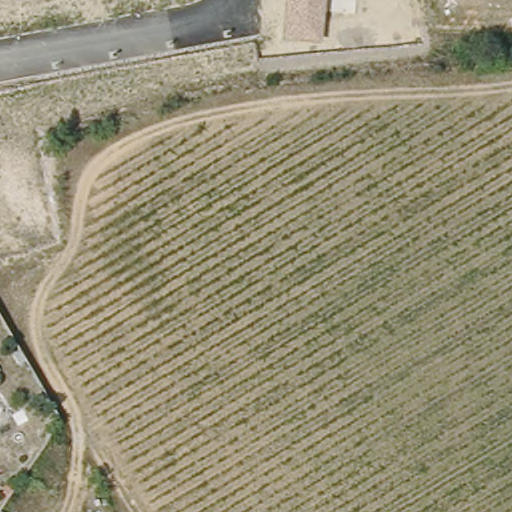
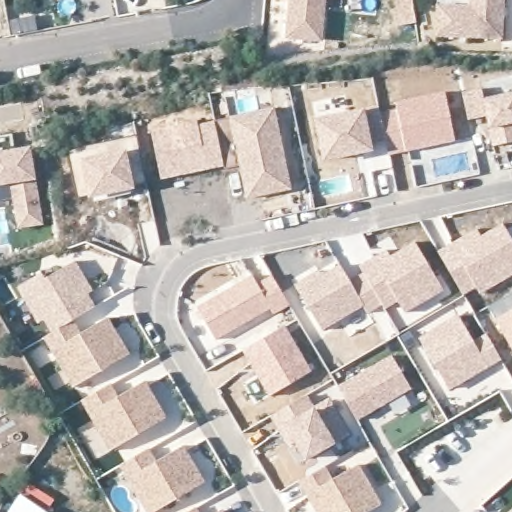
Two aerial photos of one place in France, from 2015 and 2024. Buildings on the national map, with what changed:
unchanged [(324,43),(284,39),(288,0),(327,0),(324,43)]
new [(418,25),(397,29),(392,0),(413,0),(418,25)]
new [(435,39),(437,6),(469,8),(469,0),(504,0),(502,41),(435,39)]
new [(372,78),(378,108),(365,111),(373,152),(357,156),(319,165),(303,88),(372,78)]
new [(485,117),(467,120),(462,90),(481,86),(483,98),(512,92),(512,142),(492,147),(485,117)]
new [(395,107),(393,103),(444,91),(455,141),(391,153),(379,111),(395,107)]
new [(291,190),(246,199),(238,166),(224,168),(160,180),(148,123),(167,119),(167,124),(197,119),(198,123),(213,120),(227,117),(274,107),(291,190)]
new [(135,135),(138,150),(127,153),(135,190),(89,199),(88,196),(79,197),(70,152),(135,135)]
new [(30,154),(45,230),(20,235),(12,191),(0,193),(0,159),(30,154)]
new [(476,227),(480,233),(502,221),(512,240),(512,275),(478,294),(475,288),(462,296),(435,249),(452,240),(476,227)]
new [(340,264),(344,270),(349,279),(360,273),(356,265),(373,256),(383,252),(387,250),(387,252),(397,249),(414,240),(444,291),(404,313),(397,303),(385,309),(383,310),(382,308),(370,314),(367,315),(363,307),(320,331),(293,283),(338,261),(340,264)]
new [(42,274),(43,277),(75,260),(93,292),(90,294),(97,306),(72,320),(50,333),(42,320),(37,324),(17,287),(42,274)]
new [(255,281),(271,273),(290,306),(272,315),(270,312),(215,341),(193,304),(250,273),(255,281)]
new [(512,292),(512,352),(492,316),(495,314),(490,306),(512,292)]
new [(457,313),(473,340),(486,333),(502,361),(448,392),(417,337),(457,313)]
new [(50,333),(72,320),(80,333),(108,317),(130,355),(71,387),(43,337),(50,333)]
new [(285,325),(312,372),(268,397),(240,349),(285,325)]
new [(390,355),(412,389),(357,422),(337,386),(390,355)]
new [(111,384),(117,396),(145,380),(167,419),(107,452),(80,401),(111,384)]
new [(307,393),(335,444),(297,464),(269,415),(307,393)]
new [(184,445),(206,483),(177,500),(155,460),(184,445)]
new [(155,460),(177,500),(154,512),(145,512),(119,465),(149,448),(155,460)]
new [(332,478),(359,463),(382,505),(369,512),(315,512),(297,482),(325,466),(332,478)]
new [(53,498),(45,509),(49,512),(6,512),(27,482),(53,498)]
new [(200,512),(189,512),(197,508),(200,512)]
new [(216,512),(222,509),(225,512),(216,512)]
new [(512,512),(509,512),(512,509),(512,512)]

